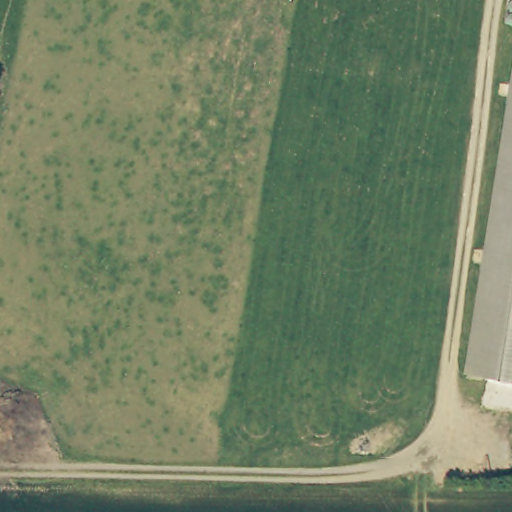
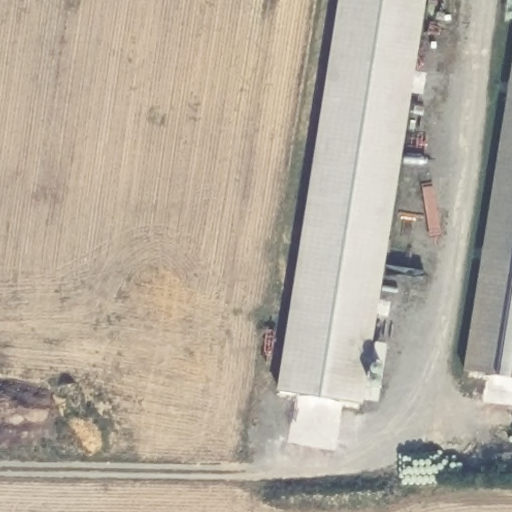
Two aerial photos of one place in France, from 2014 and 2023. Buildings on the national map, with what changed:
new [(277,390),(338,0),(427,0),(364,405),(277,390)]
unchanged [(512,96),(512,377),(467,369),(512,96)]

